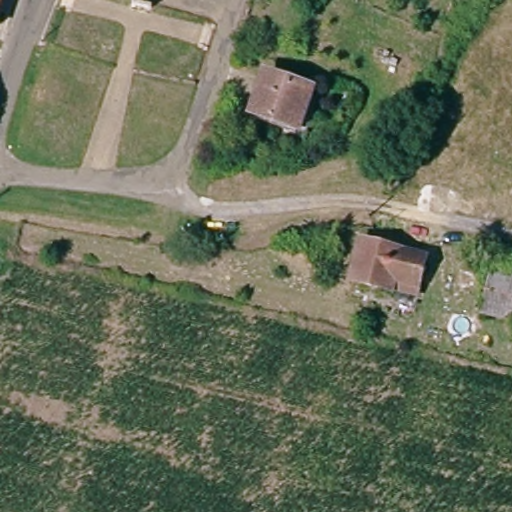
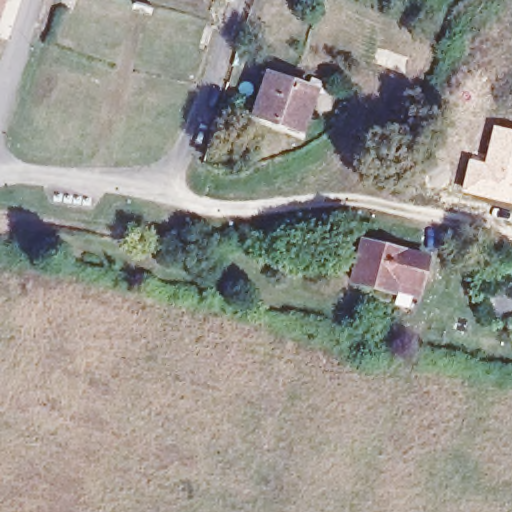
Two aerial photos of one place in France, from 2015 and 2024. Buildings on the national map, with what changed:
unchanged [(315,94),(310,92),(295,132),(254,116),(268,76),(306,90),(307,86),(310,81),(319,85),(317,90),(315,94)]
new [(467,157),(482,160),(492,124),(512,129),(512,204),(460,191),(467,157)]
unchanged [(350,276),(357,238),(421,251),(413,289),(350,276)]
unchanged [(494,255),(492,263),(482,261),(483,253),(494,255)]
unchanged [(480,314),(489,275),(512,280),(512,322),(480,314)]

